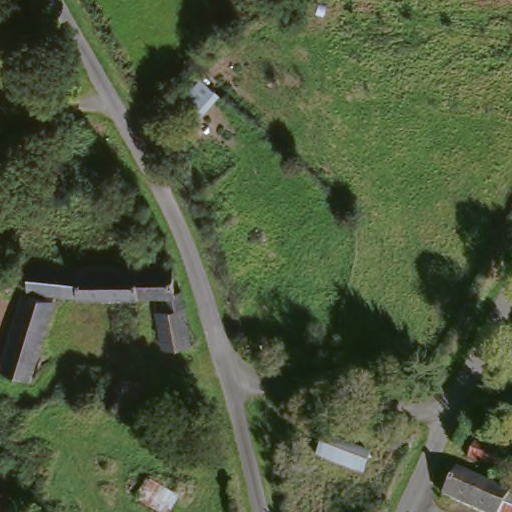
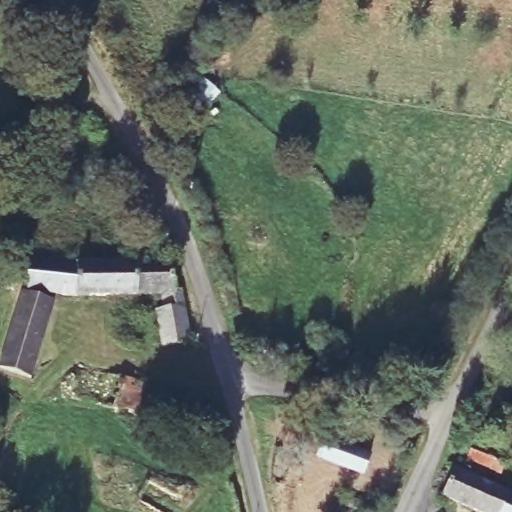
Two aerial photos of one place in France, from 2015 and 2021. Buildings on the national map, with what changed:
unchanged [(177,263),(175,294),(137,296),(137,264),(177,263)]
unchanged [(137,296),(28,295),(34,266),(137,264),(137,296)]
unchanged [(185,295),(181,344),(155,341),(157,308),(175,294),(185,295)]
unchanged [(29,380),(0,371),(0,362),(20,301),(27,302),(46,310),(29,380)]
unchanged [(114,371),(144,377),(137,410),(136,413),(106,407),(114,371)]
unchanged [(158,427),(136,422),(137,410),(160,413),(158,427)]
unchanged [(0,435),(0,420),(7,423),(0,435)]
unchanged [(365,447),(358,472),(321,462),(327,440),(365,447)]
unchanged [(504,451),(500,468),(468,460),(475,443),(504,451)]
unchanged [(443,468),(447,470),(512,490),(512,512),(485,512),(437,497),(443,468)]
unchanged [(169,512),(147,512),(134,505),(146,480),(178,494),(169,512)]

